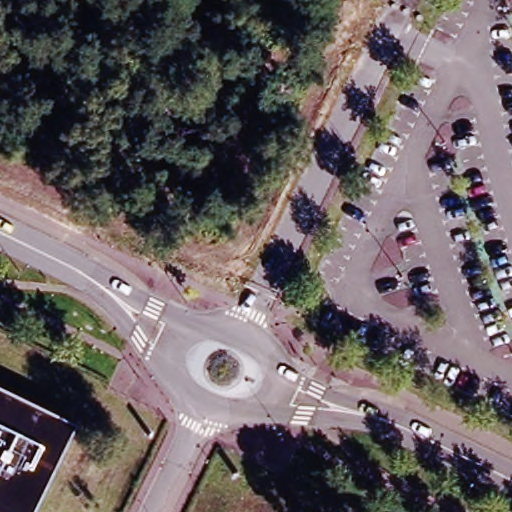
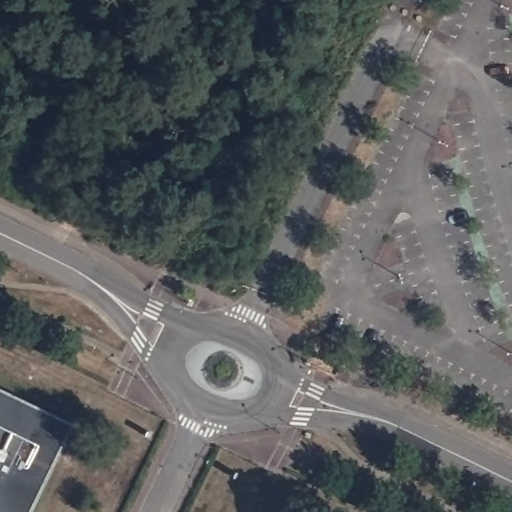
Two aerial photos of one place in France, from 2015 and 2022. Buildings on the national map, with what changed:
unchanged [(76,421),(33,512),(0,512),(0,385),(76,421)]

